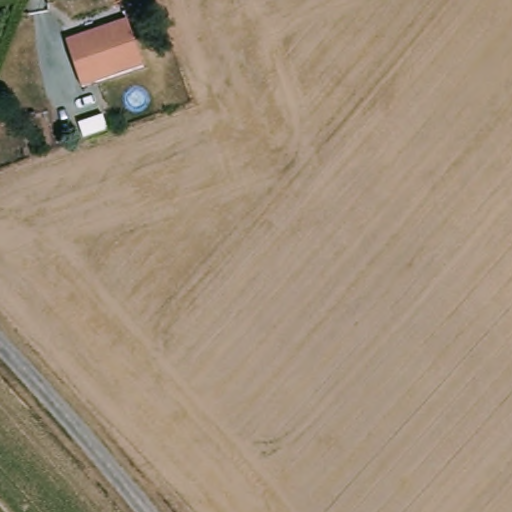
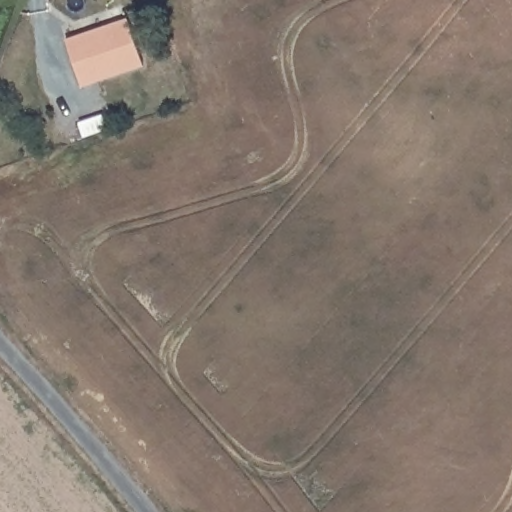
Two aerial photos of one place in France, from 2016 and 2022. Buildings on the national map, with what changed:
unchanged [(124,20),(142,66),(80,89),(64,42),(124,20)]

